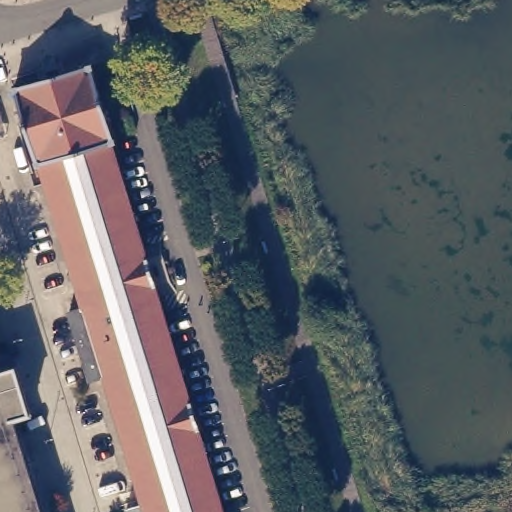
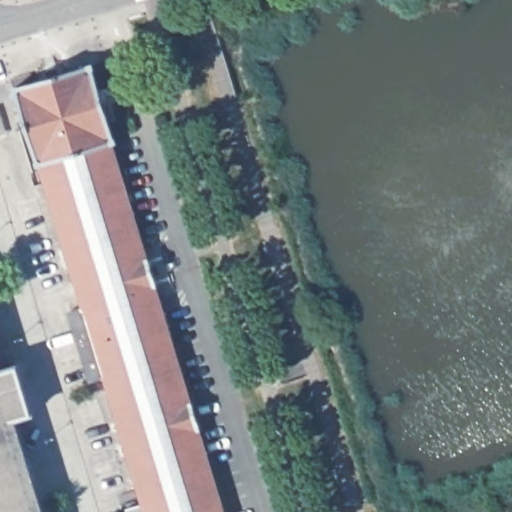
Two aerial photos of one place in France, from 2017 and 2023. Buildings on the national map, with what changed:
unchanged [(146,495),(109,367),(95,371),(75,302),(88,297),(47,162),(45,163),(20,78),(97,55),(120,132),(117,133),(196,392),(197,391),(205,419),(204,419),(232,512),(136,512),(132,498),(146,495)]
unchanged [(32,409),(15,414),(44,512),(0,512),(0,366),(18,360),(32,409)]

